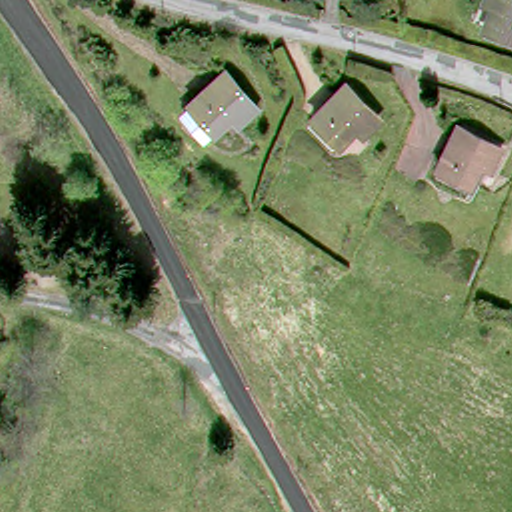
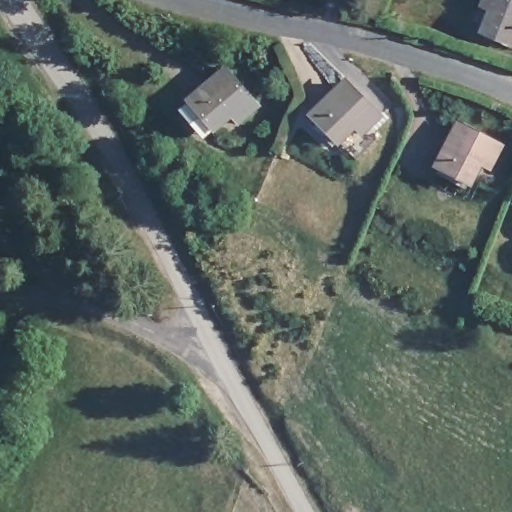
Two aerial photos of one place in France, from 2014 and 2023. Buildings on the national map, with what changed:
unchanged [(483,28),(492,5),(481,1),(482,0),(512,0),(512,39),(483,28)]
unchanged [(186,116),(194,106),(230,73),(261,108),(242,126),(235,117),(218,133),(209,141),(186,116)]
unchanged [(382,122),(365,139),(358,132),(343,146),(317,119),(348,88),(382,122)]
unchanged [(502,149),(491,170),(482,165),(472,185),(441,170),(460,127),(502,149)]

